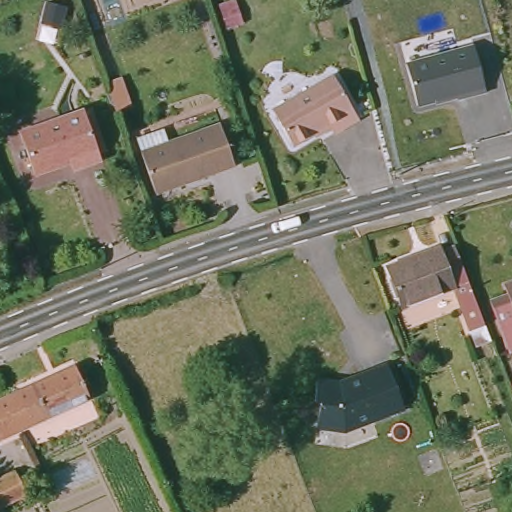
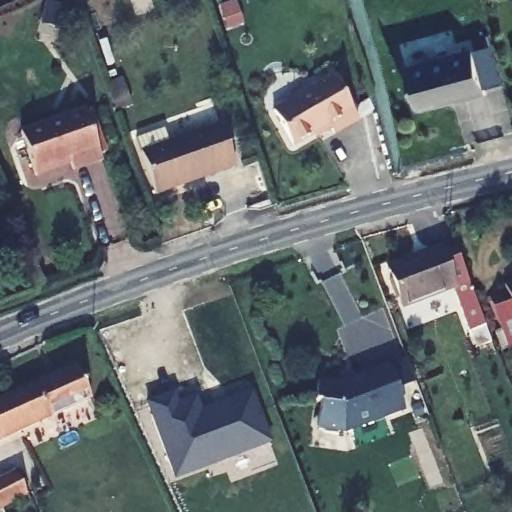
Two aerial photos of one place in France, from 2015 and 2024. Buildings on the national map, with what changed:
unchanged [(242,23),(227,28),(221,11),(236,5),(242,23)]
unchanged [(474,45),(487,91),(458,99),(457,94),(418,105),(406,64),(474,45)]
unchanged [(359,119),(334,133),(329,125),(293,146),(273,112),(334,77),(359,119)]
unchanged [(130,106),(117,111),(111,94),(124,89),(130,106)]
unchanged [(72,170),(69,160),(60,163),(60,165),(34,174),(20,133),(84,111),(92,108),(107,152),(99,155),(100,160),(72,170)]
unchanged [(136,139),(165,129),(170,143),(220,124),(235,166),(156,194),(136,139)]
unchanged [(472,348),(467,337),(449,288),(399,307),(384,268),(435,249),(437,253),(451,248),(482,331),(486,342),(472,348)]
unchanged [(491,306),(509,300),(505,291),(512,289),(512,357),(510,357),(491,306)]
unchanged [(75,366),(90,399),(0,440),(0,401),(75,366)]
unchanged [(341,385),(362,377),(362,375),(388,366),(404,410),(345,432),(317,427),(321,403),(315,402),(318,381),(341,385)]
new [(148,403),(176,392),(180,403),(197,396),(202,410),(251,390),(271,444),(174,481),(148,403)]
unchanged [(16,471),(27,493),(1,507),(4,512),(0,512),(0,480),(16,471)]

